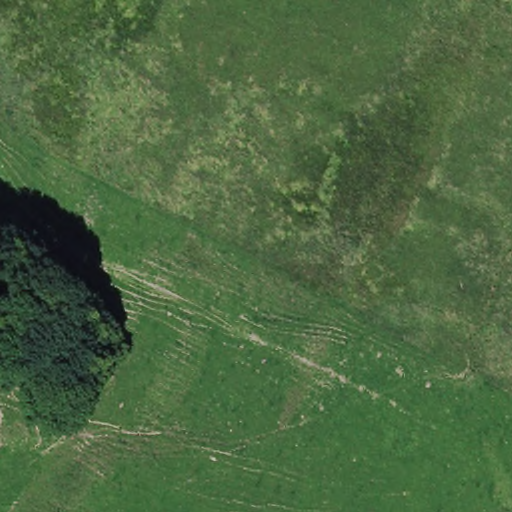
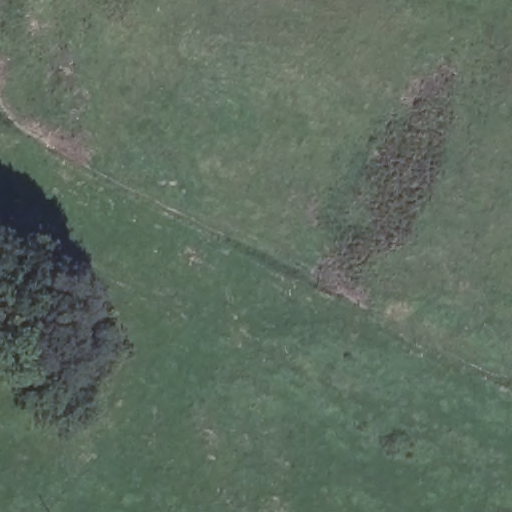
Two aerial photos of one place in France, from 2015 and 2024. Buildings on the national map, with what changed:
[]

